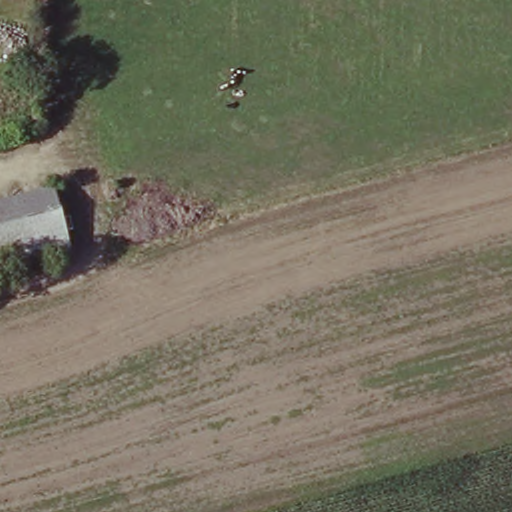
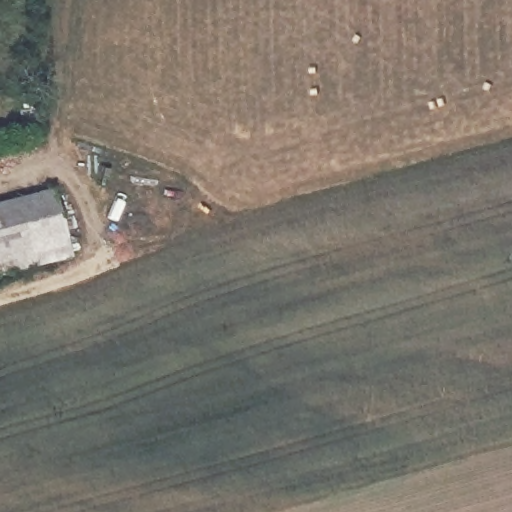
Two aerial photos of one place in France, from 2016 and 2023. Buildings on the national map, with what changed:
unchanged [(69,248),(0,265),(0,195),(51,182),(69,248)]

